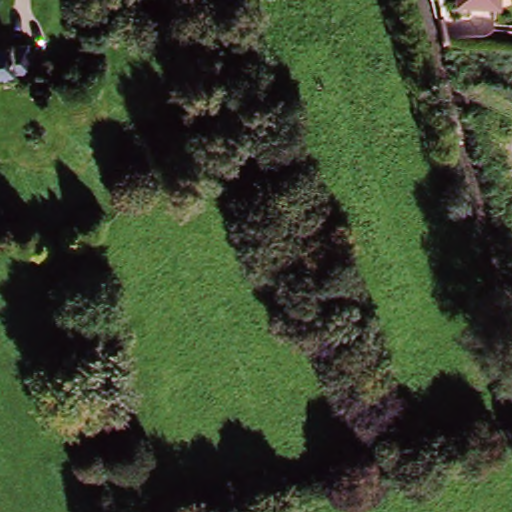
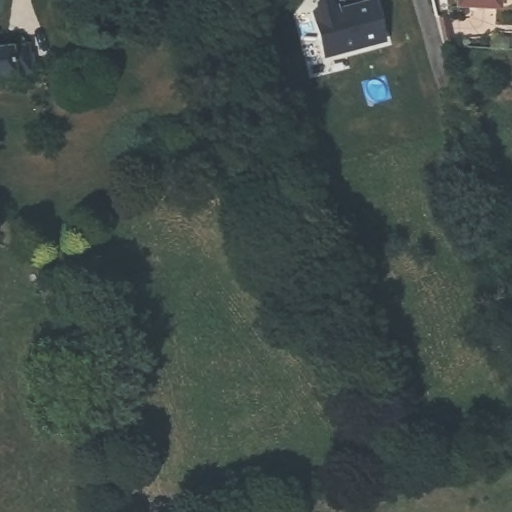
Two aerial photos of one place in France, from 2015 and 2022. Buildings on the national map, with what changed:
new [(334,4),(335,9),(362,0),(373,0),(384,34),(326,54),(311,10),(321,1),(334,4)]
unchanged [(459,0),(502,0),(501,10),(458,6),(459,0)]
unchanged [(0,83),(0,54),(28,51),(32,79),(0,83)]

